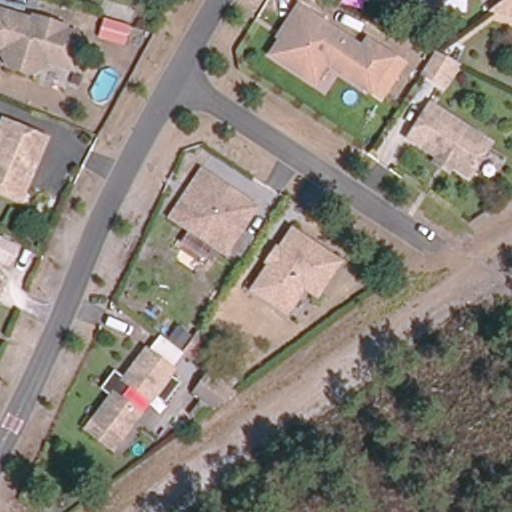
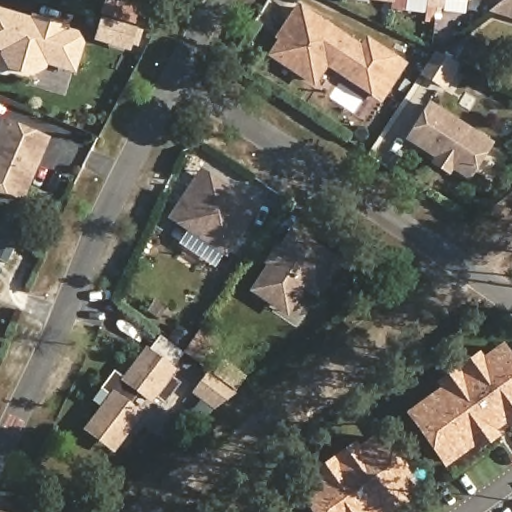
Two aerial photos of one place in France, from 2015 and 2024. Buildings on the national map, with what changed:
unchanged [(442,6),(429,5),(430,0),(443,0),(442,6)]
unchanged [(487,10),(500,0),(512,0),(512,17),(487,10)]
unchanged [(351,81),(322,62),(308,82),(268,55),(277,41),(273,38),(283,23),(292,8),(357,51),(363,42),(387,58),(400,66),(393,77),(381,95),(378,99),(351,81)]
unchanged [(39,67),(27,74),(6,68),(0,56),(0,54),(1,50),(0,50),(0,13),(29,22),(30,18),(61,27),(60,31),(72,35),(77,44),(69,70),(41,61),(39,67)]
unchanged [(125,49),(101,42),(106,25),(130,33),(125,49)]
unchanged [(444,91),(423,77),(437,57),(459,68),(444,91)]
unchanged [(431,163),(434,157),(405,139),(426,106),(485,144),(465,177),(447,166),(444,172),(431,163)]
unchanged [(0,187),(0,126),(4,117),(47,135),(41,151),(31,173),(21,196),(0,187)]
unchanged [(175,223),(167,217),(197,171),(206,177),(252,207),(221,253),(175,223)]
unchanged [(298,287),(282,313),(272,306),(248,290),(266,264),(263,262),(271,251),(273,252),(287,231),(334,262),(313,293),(312,296),(298,287)]
unchanged [(172,347),(179,338),(189,346),(184,354),(172,347)]
unchanged [(197,339),(212,351),(200,370),(184,358),(197,339)]
new [(469,447),(466,442),(440,461),(403,410),(434,388),(430,382),(452,366),(471,352),(475,358),(492,345),(512,373),(512,416),(501,423),(498,418),(485,428),(488,433),(469,447)]
unchanged [(87,425),(95,415),(114,390),(105,384),(116,370),(124,376),(147,346),(174,365),(169,372),(177,379),(165,396),(156,389),(151,396),(138,386),(128,400),(141,409),(121,435),(114,445),(87,425)]
unchanged [(211,409),(190,393),(205,373),(232,393),(211,409)]
new [(312,481),(307,476),(327,461),(347,448),(351,453),(368,440),(406,491),(395,499),(398,504),(387,512),(307,512),(295,494),(312,481)]

